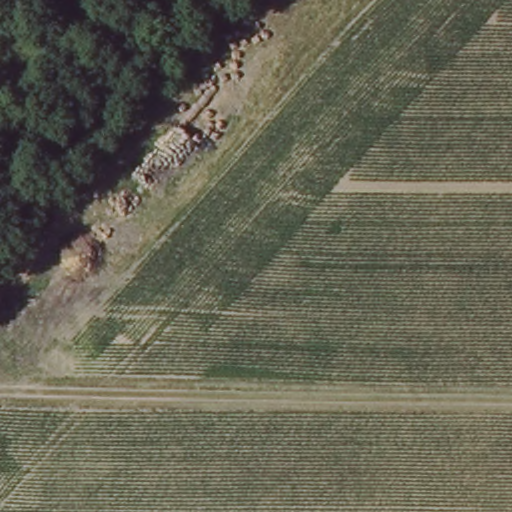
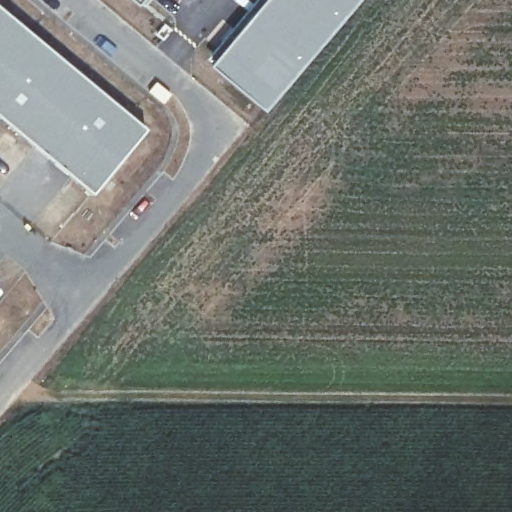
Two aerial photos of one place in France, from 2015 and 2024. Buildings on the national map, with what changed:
new [(142,2),(139,0),(144,0),(142,2)]
new [(260,0),(358,0),(317,48),(265,105),(210,60),(260,0)]
new [(0,6),(146,128),(90,195),(0,121),(0,6)]

